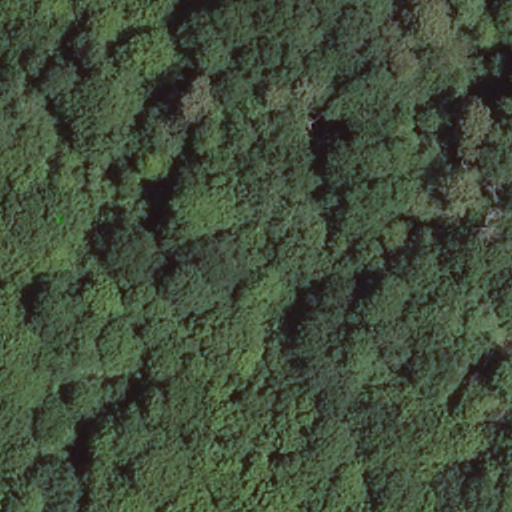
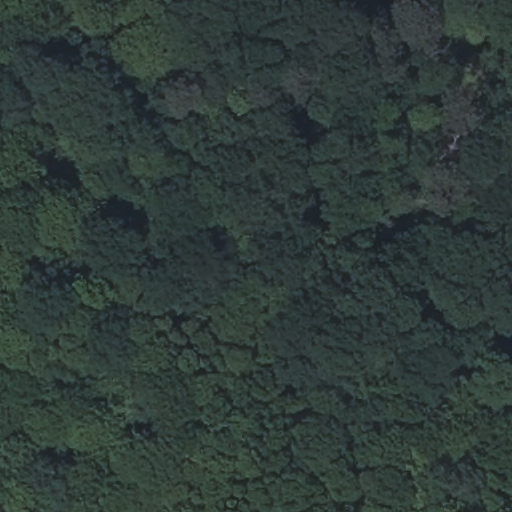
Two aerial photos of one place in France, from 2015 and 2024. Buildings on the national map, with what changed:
[]

